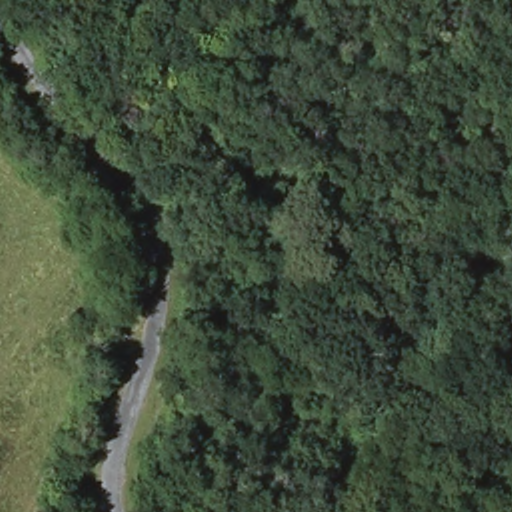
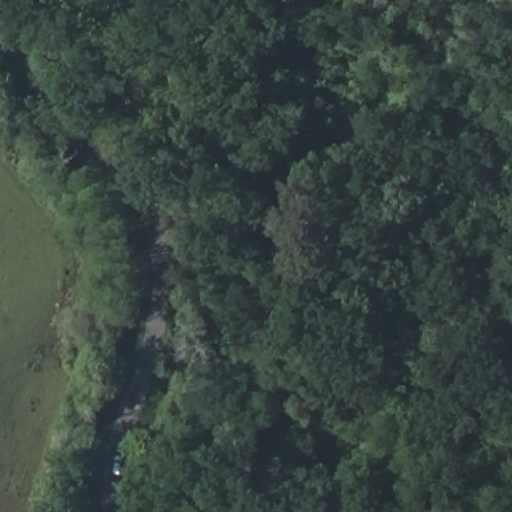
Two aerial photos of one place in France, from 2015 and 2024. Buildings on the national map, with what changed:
[]

